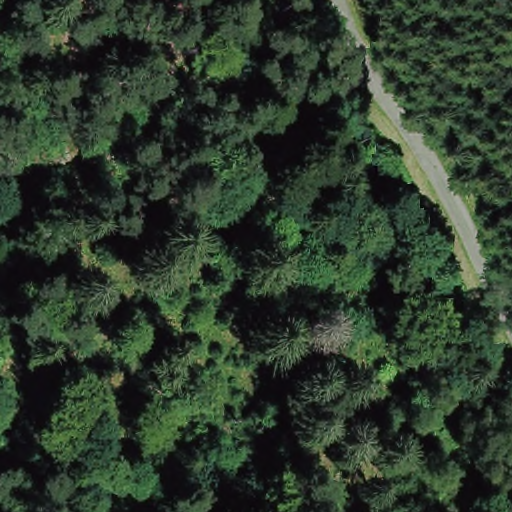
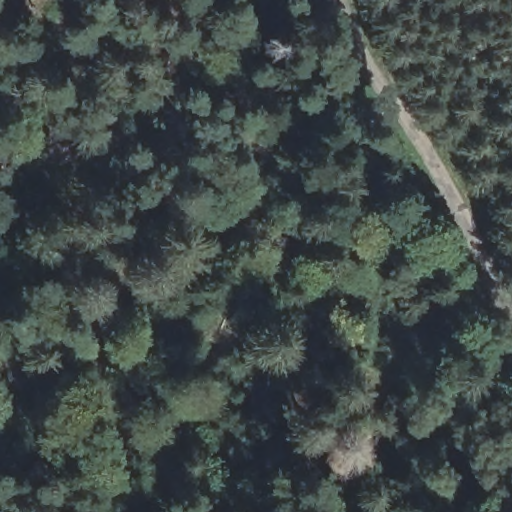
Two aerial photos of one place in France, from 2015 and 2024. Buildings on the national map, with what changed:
[]

